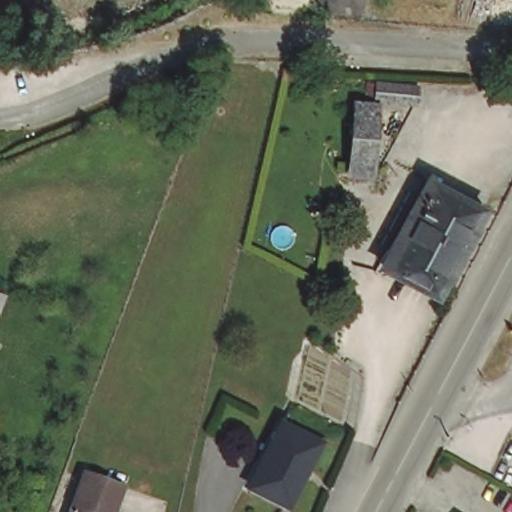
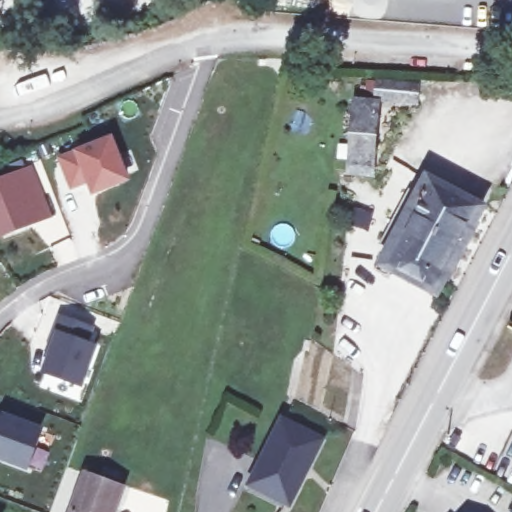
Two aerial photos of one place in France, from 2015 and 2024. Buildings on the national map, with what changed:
unchanged [(415,99),(414,117),(374,113),(376,94),(415,99)]
unchanged [(374,120),(370,181),(346,180),(351,120),(374,120)]
new [(60,157),(108,138),(124,177),(91,190),(87,177),(70,184),(60,157)]
new [(27,220),(12,225),(10,221),(0,225),(0,181),(27,170),(33,185),(45,212),(27,220)]
unchanged [(433,177),(487,204),(442,293),(393,268),(388,266),(398,247),(390,242),(385,240),(413,188),(425,195),(433,177)]
demolished [(2,293),(0,298),(0,292),(2,293)]
new [(50,353),(46,352),(53,333),(59,317),(88,328),(83,343),(92,346),(80,384),(43,371),(46,363),(56,334),(50,353)]
new [(2,413),(43,429),(28,472),(0,461),(0,412),(2,413)]
unchanged [(326,433),(293,497),(255,478),(287,414),(326,433)]
unchanged [(115,512),(71,512),(88,469),(126,483),(115,512)]

